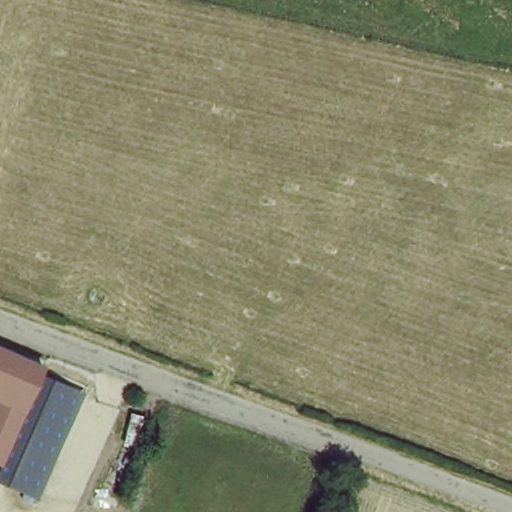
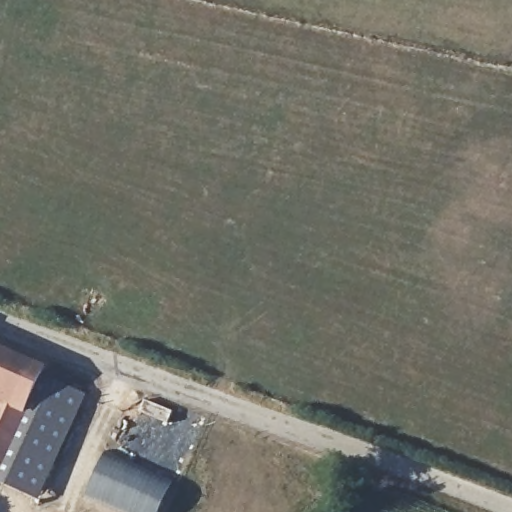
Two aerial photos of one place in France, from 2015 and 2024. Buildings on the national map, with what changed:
unchanged [(0,465),(0,424),(9,404),(0,401),(0,350),(47,371),(45,375),(5,466),(0,465)]
unchanged [(45,375),(77,389),(39,480),(5,466),(45,375)]
new [(173,482),(160,512),(120,512),(84,496),(105,451),(173,482)]

